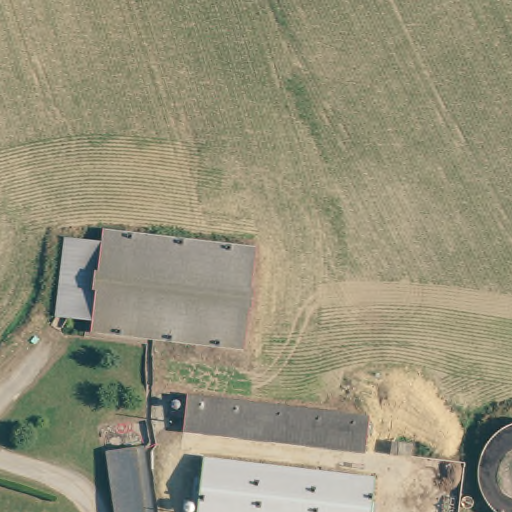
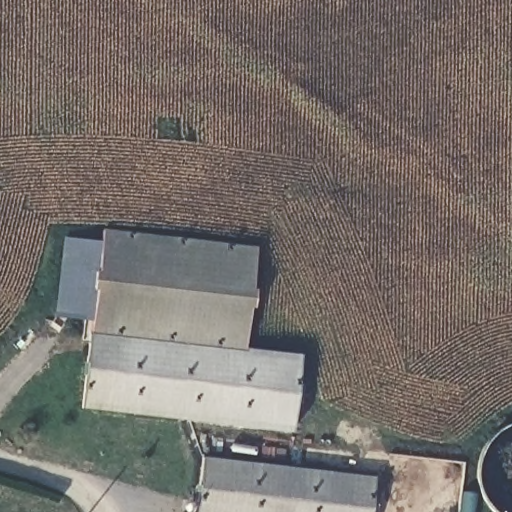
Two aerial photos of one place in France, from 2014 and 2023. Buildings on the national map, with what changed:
unchanged [(99,250),(100,239),(255,254),(245,352),(105,338),(91,337),(92,326),(92,322),(97,274),(99,250)]
unchanged [(63,246),(64,246),(92,249),(99,250),(97,274),(92,322),(92,326),(71,324),(56,323),(61,271),(63,246)]
new [(245,352),(246,348),(299,355),(292,433),(82,408),(91,337),(105,338),(245,352)]
demolished [(189,428),(192,393),(375,413),(372,448),(189,428)]
unchanged [(397,441),(418,444),(416,457),(396,454),(397,441)]
demolished [(148,512),(111,512),(109,500),(105,449),(139,444),(148,512)]
unchanged [(198,512),(205,457),(375,477),(371,512),(198,512)]

